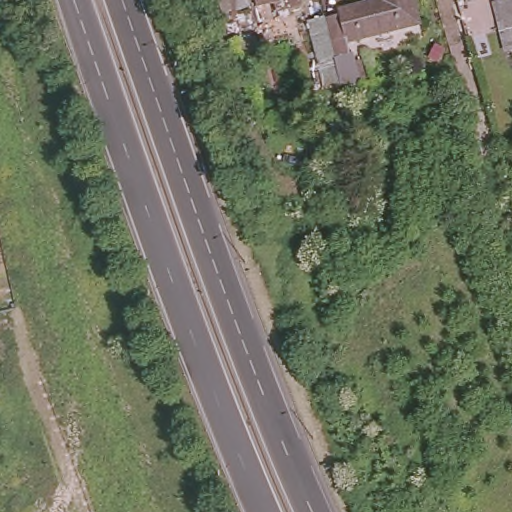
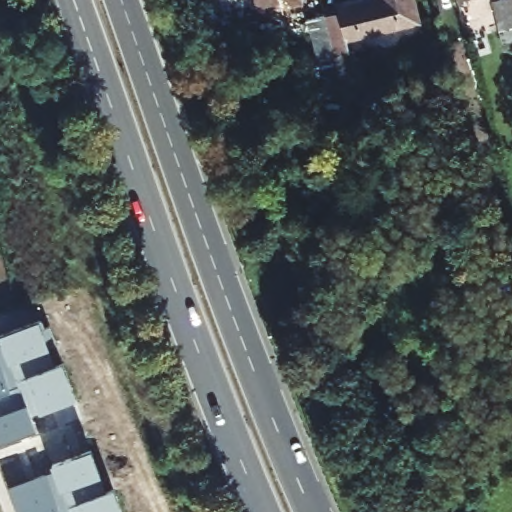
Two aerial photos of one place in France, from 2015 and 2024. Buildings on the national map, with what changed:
unchanged [(273,3),(272,0),(283,0),(273,3)]
unchanged [(413,18),(340,35),(333,4),(349,0),(409,0),(413,18)]
unchanged [(505,50),(489,1),(493,0),(512,0),(512,48),(505,50)]
unchanged [(326,94),(308,17),(324,13),(334,55),(353,50),(361,86),(342,91),(326,94)]
new [(63,361),(77,400),(40,414),(38,409),(31,412),(37,430),(0,442),(0,344),(2,343),(0,338),(0,333),(39,320),(55,364),(63,361)]
new [(113,488),(123,512),(19,512),(10,486),(53,468),(51,463),(93,448),(107,491),(113,488)]

